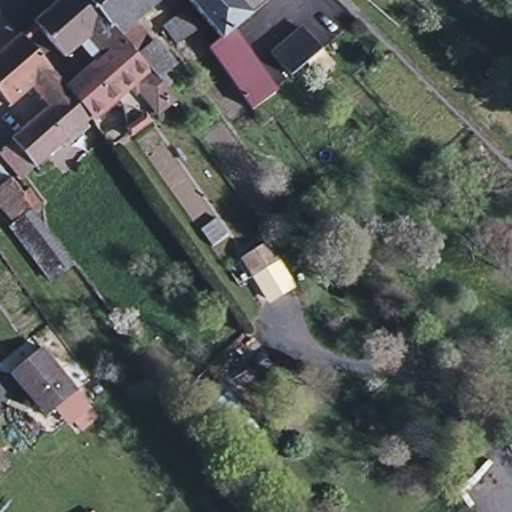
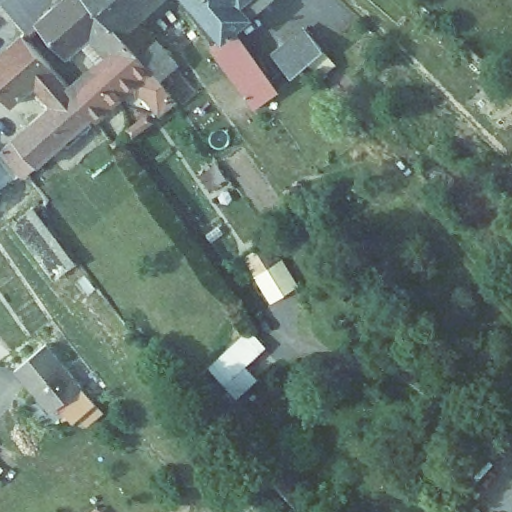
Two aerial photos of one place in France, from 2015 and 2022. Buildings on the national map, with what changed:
unchanged [(135,89),(127,81),(90,113),(67,87),(95,61),(77,42),(62,55),(32,21),(56,0),(86,0),(117,35),(130,22),(149,43),(155,44),(171,62),(162,71),(169,80),(164,85),(145,66),(170,99),(155,111),(137,88),(135,89)]
unchanged [(130,22),(117,35),(86,0),(155,0),(130,22)]
unchanged [(248,9),(251,13),(235,29),(226,37),(225,35),(193,0),(258,0),(248,9)]
unchanged [(187,12),(199,27),(179,42),(165,26),(187,12)]
unchanged [(303,27),(322,48),(292,74),(274,53),(303,27)]
unchanged [(225,35),(226,37),(235,29),(277,91),(255,108),(212,47),(225,35)]
unchanged [(45,105),(29,83),(7,102),(0,94),(0,49),(19,32),(67,87),(90,113),(47,153),(35,164),(25,174),(20,178),(13,173),(0,158),(0,144),(10,136),(22,126),(45,105)]
unchanged [(0,202),(0,180),(9,173),(20,188),(27,183),(40,201),(32,209),(44,223),(70,257),(50,274),(7,217),(10,215),(0,202)]
unchanged [(269,243),(278,259),(255,272),(246,257),(269,243)]
unchanged [(45,343),(81,386),(50,411),(15,369),(45,343)]

